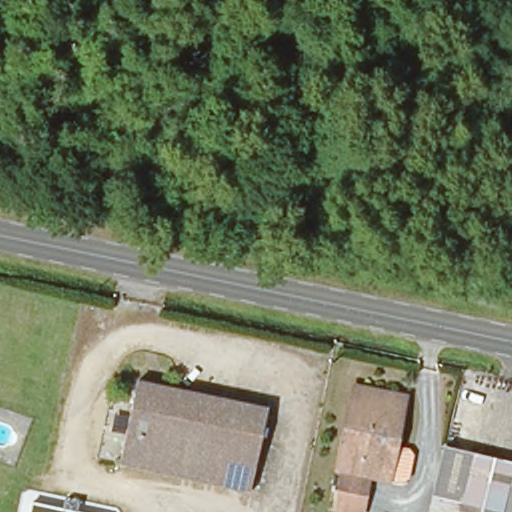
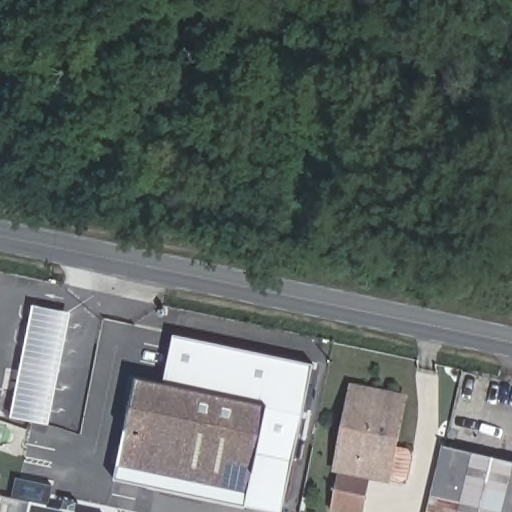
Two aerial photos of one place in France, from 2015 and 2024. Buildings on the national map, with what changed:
new [(34,306),(71,313),(50,426),(12,418),(34,306)]
new [(154,475),(242,492),(251,493),(257,466),(269,411),(163,387),(175,335),(314,366),(283,512),(273,512),(115,480),(119,467),(154,475)]
unchanged [(269,411),(257,466),(159,447),(154,475),(119,467),(136,382),(269,411)]
unchanged [(362,512),(334,512),(332,512),(339,472),(333,471),(351,388),(394,396),(405,398),(394,447),(407,451),(413,460),(407,487),(370,479),(362,512)]
unchanged [(251,493),(154,475),(159,447),(257,466),(251,493)]
unchanged [(444,448),(512,463),(512,512),(429,512),(444,448)]
new [(0,508),(0,495),(3,496),(0,508)]
unchanged [(63,512),(65,501),(79,505),(77,512),(30,512),(31,506),(63,512)]

